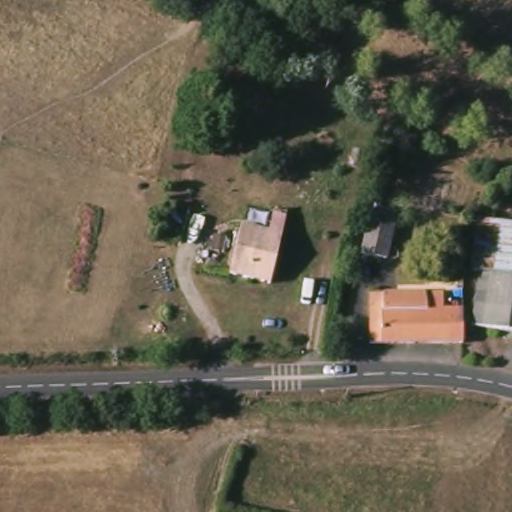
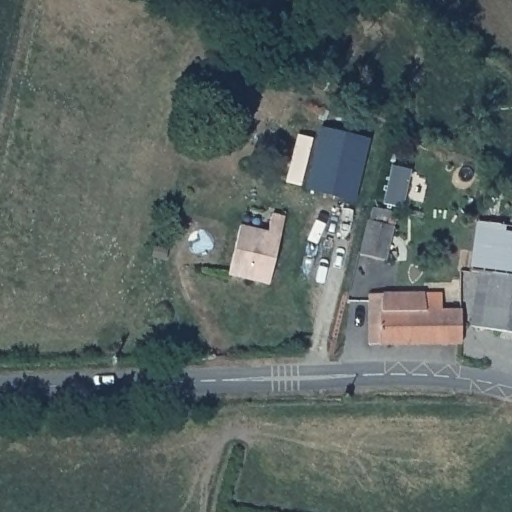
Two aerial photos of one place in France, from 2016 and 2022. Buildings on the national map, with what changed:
new [(357,201),(306,189),(321,128),(372,140),(357,201)]
unchanged [(272,285),(227,284),(230,238),(255,238),(255,219),(276,219),(272,285)]
unchanged [(390,223),(388,257),(365,255),(368,223),(390,223)]
unchanged [(467,228),(512,230),(512,279),(465,278),(464,264),(467,228)]
unchanged [(512,332),(475,330),(476,299),(465,299),(465,278),(512,279),(512,332)]
unchanged [(375,292),(428,296),(448,298),(448,318),(456,318),(466,318),(463,344),(375,344),(375,292)]

